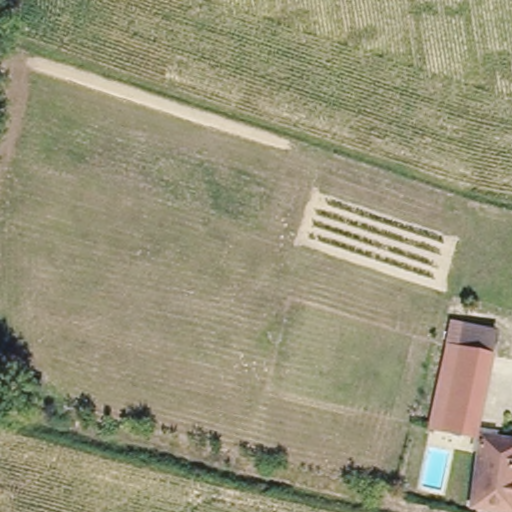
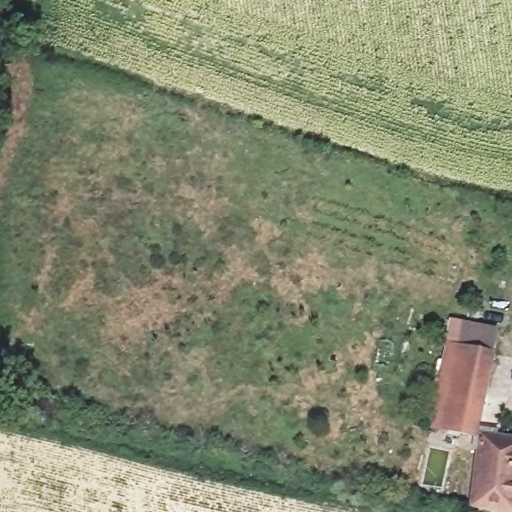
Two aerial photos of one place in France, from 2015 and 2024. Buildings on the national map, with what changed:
unchanged [(497,341),(479,424),(443,414),(459,332),(497,341)]
unchanged [(486,425),(512,430),(512,504),(475,498),(486,425)]

